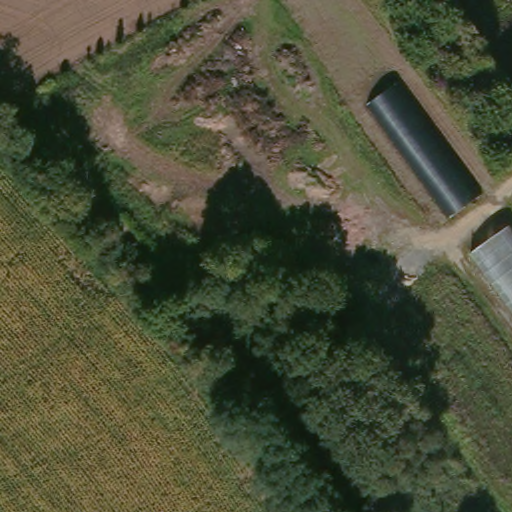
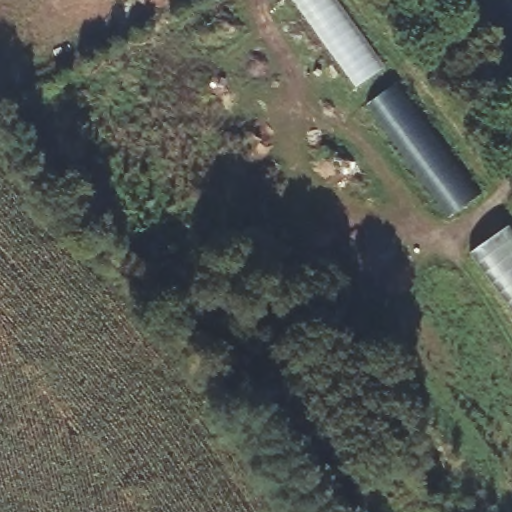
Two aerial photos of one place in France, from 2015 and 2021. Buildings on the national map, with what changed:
new [(385,68),(358,88),(294,0),(335,0),(385,68)]
unchanged [(447,219),(363,107),(398,82),(482,192),(447,219)]
unchanged [(512,232),(512,313),(469,257),(508,227),(512,232)]

